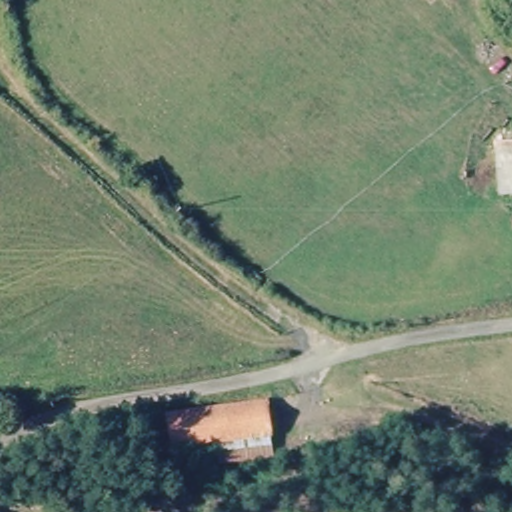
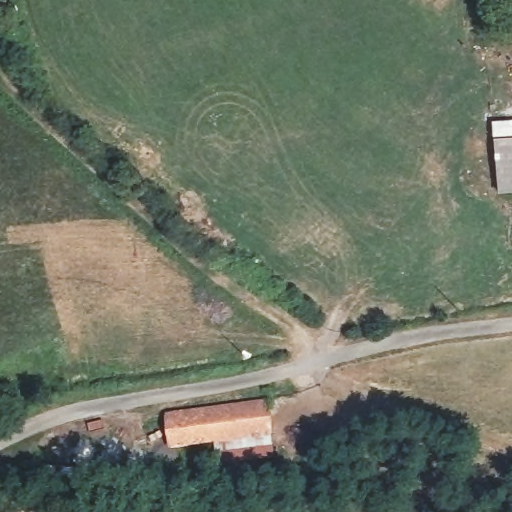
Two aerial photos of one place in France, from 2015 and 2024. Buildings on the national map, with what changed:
unchanged [(499,189),(496,138),(512,138),(512,189),(499,189)]
unchanged [(163,454),(153,418),(250,403),(259,433),(200,446),(163,454)]
unchanged [(259,433),(264,459),(206,469),(200,446),(259,433)]

